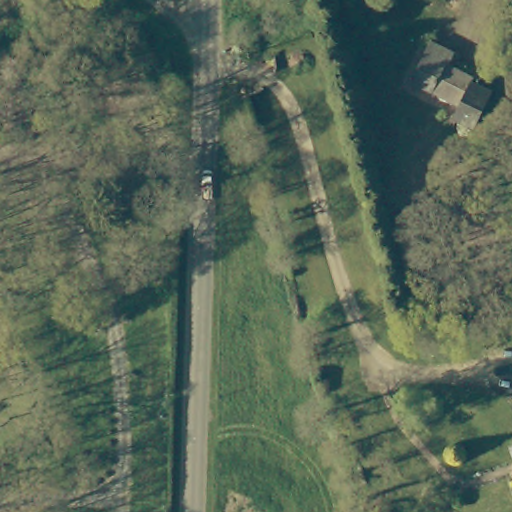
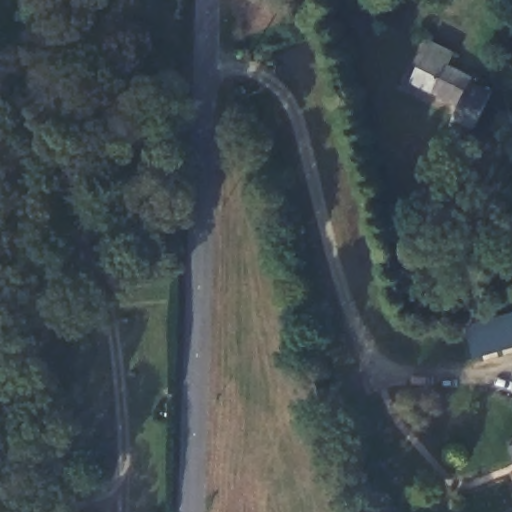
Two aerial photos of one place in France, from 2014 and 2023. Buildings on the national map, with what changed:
unchanged [(455,55),(449,66),(475,78),(472,83),(493,93),(475,130),(454,119),(460,107),(412,84),(431,44),(455,55)]
unchanged [(150,89),(145,67),(166,60),(172,81),(150,89)]
unchanged [(510,256),(506,241),(512,239),(512,256),(510,256)]
new [(512,315),(512,348),(474,358),(465,327),(512,315)]
unchanged [(512,443),(512,457),(507,445),(512,443)]

